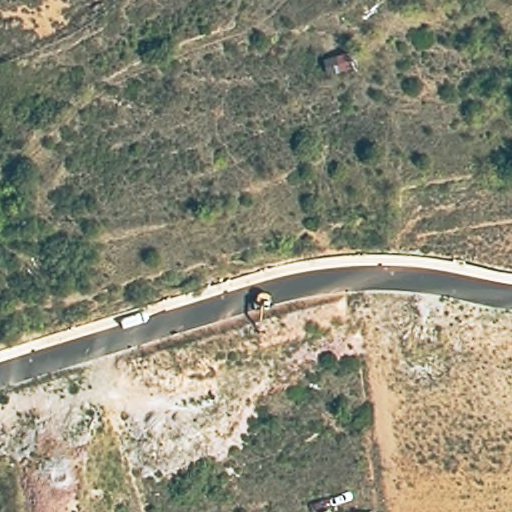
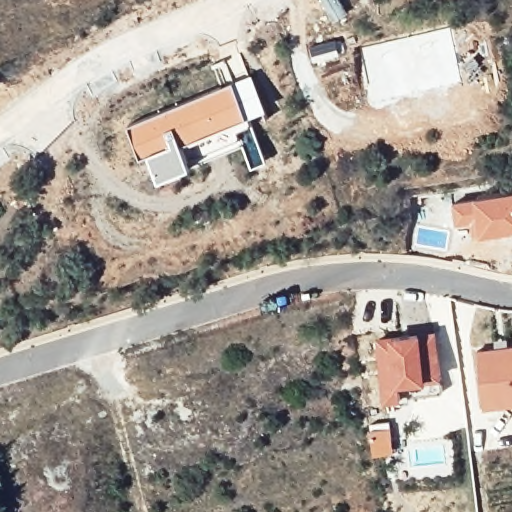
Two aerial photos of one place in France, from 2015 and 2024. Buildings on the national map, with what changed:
new [(246,115),(181,143),(191,165),(160,178),(149,153),(141,156),(128,124),(234,81),(252,72),(267,108),(246,115)]
new [(512,191),(512,228),(472,236),(470,224),(455,227),(450,205),(512,191)]
new [(443,379),(443,393),(402,399),(384,402),(376,338),(390,336),(420,332),(437,330),(443,379)]
new [(487,404),(480,348),(512,344),(512,401),(487,404)]

